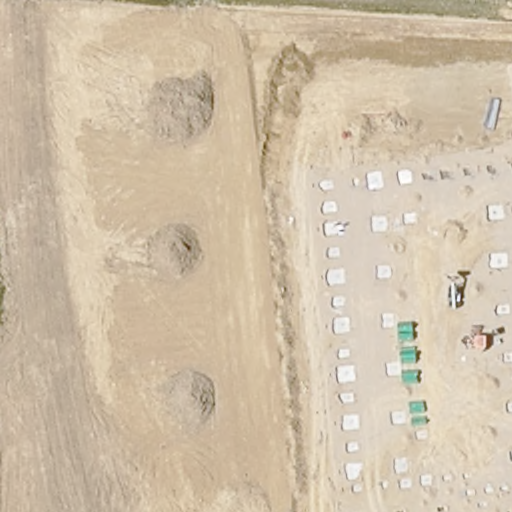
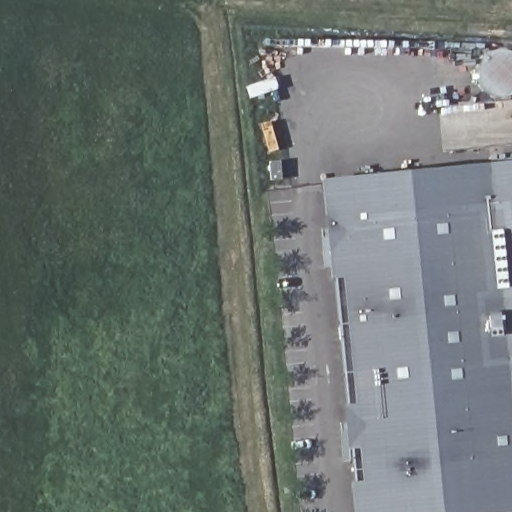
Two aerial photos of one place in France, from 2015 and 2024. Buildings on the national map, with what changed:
new [(503,512),(355,512),(351,482),(358,481),(354,449),(348,449),(344,406),(349,405),(337,279),(332,280),(321,180),(491,163),(512,161),(512,511),(503,512)]
demolished [(476,474),(469,417),(512,412),(512,470),(476,474)]

